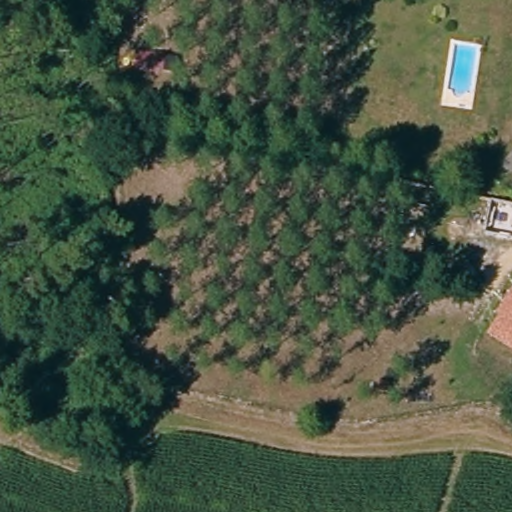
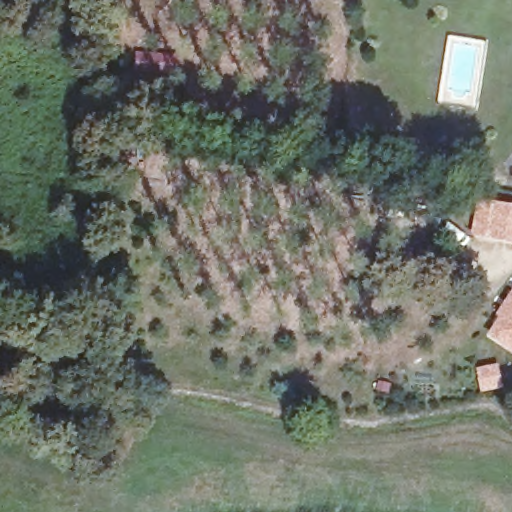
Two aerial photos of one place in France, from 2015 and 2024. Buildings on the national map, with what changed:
new [(477,199),(512,206),(512,244),(471,236),(477,199)]
unchanged [(512,352),(487,334),(512,296),(512,352)]

